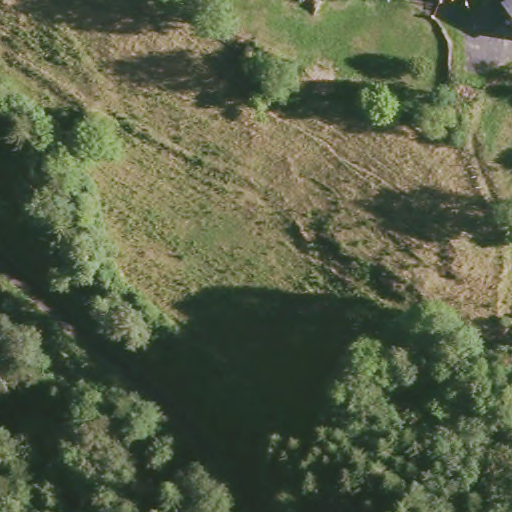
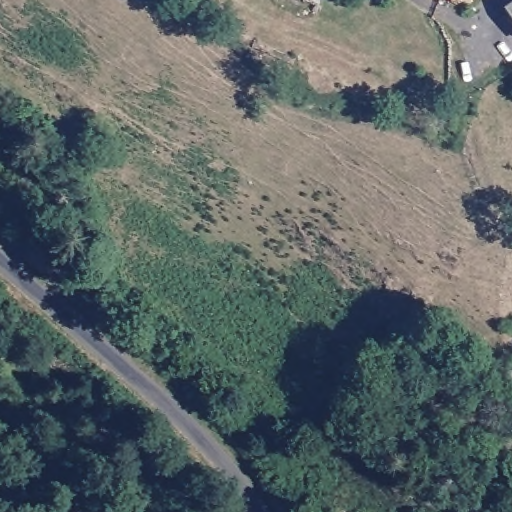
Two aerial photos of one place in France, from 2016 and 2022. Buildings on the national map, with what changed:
unchanged [(323,0),(318,13),(288,0),(323,0)]
unchanged [(446,0),(469,0),(462,10),(446,0)]
unchanged [(512,8),(512,28),(504,15),(512,8)]

